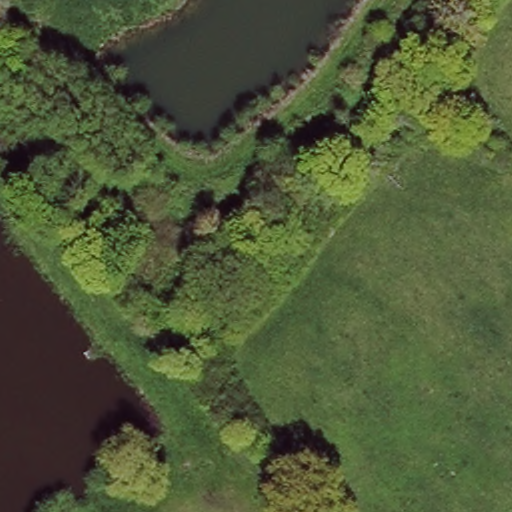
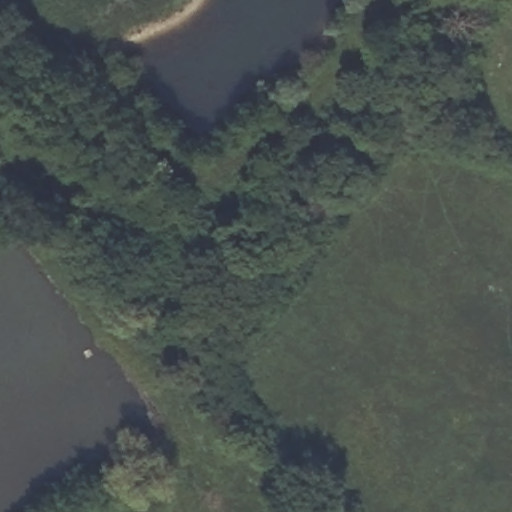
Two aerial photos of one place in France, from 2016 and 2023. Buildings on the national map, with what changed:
unchanged [(129,210),(138,203),(146,214),(135,218),(129,210)]
unchanged [(163,260),(189,241),(204,253),(176,275),(163,260)]

